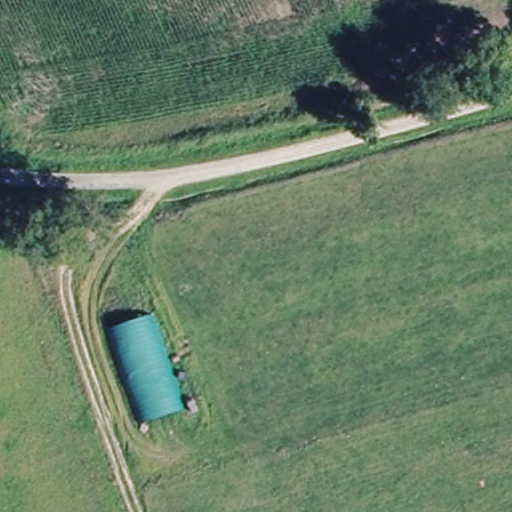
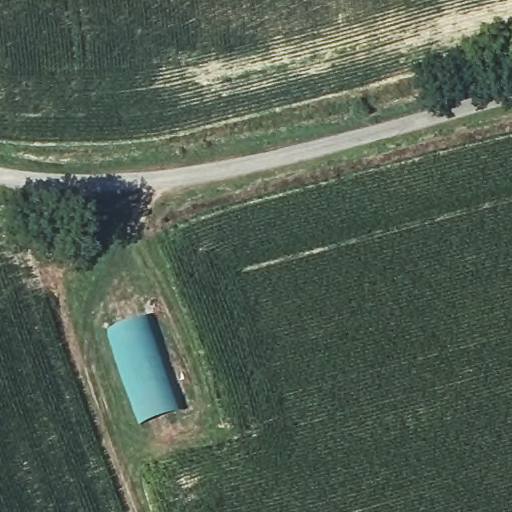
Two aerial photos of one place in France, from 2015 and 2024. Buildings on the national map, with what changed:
unchanged [(151,313),(184,408),(141,423),(111,329),(151,313)]

